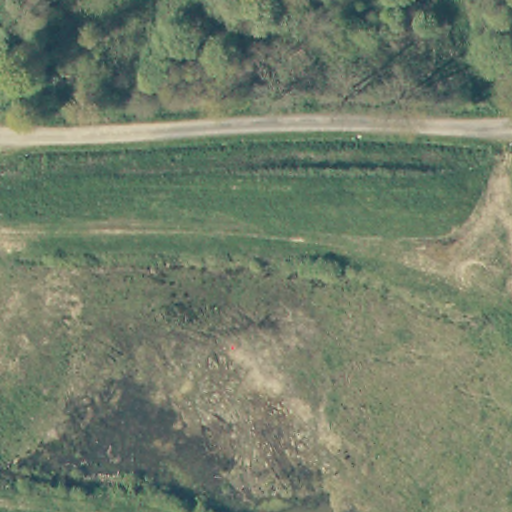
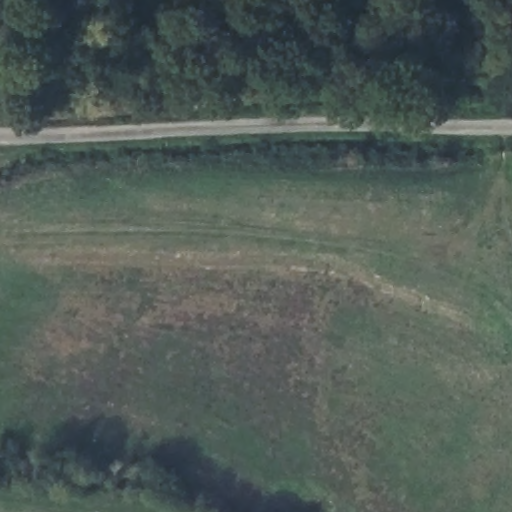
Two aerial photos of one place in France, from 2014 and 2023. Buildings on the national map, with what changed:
[]

